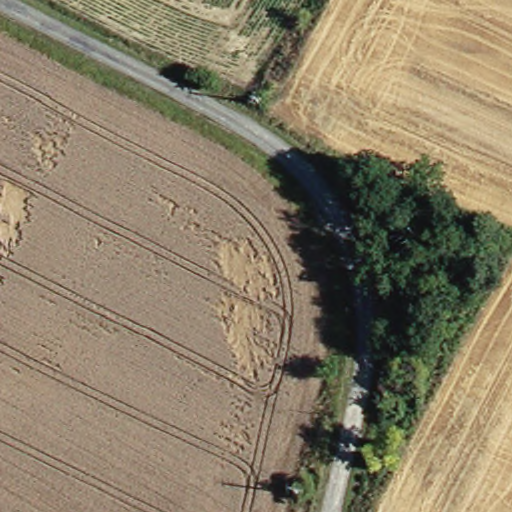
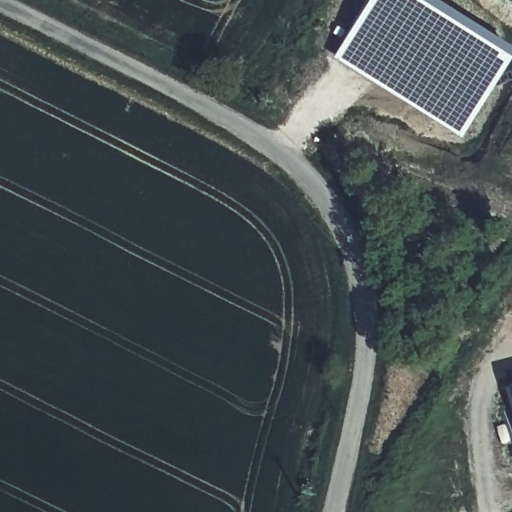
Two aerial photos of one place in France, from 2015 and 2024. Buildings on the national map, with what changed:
new [(328,60),(364,0),(430,0),(512,49),(512,52),(461,139),(328,60)]
new [(512,383),(512,412),(504,385),(512,383)]

